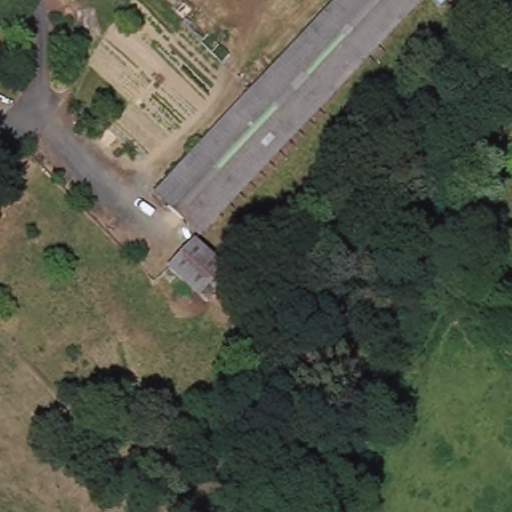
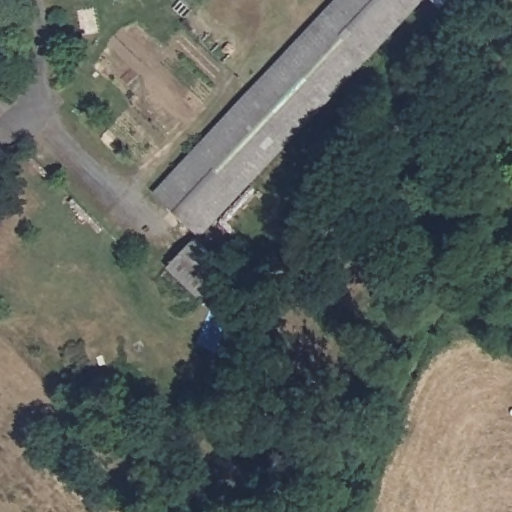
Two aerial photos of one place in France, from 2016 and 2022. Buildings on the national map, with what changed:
unchanged [(199,234),(195,227),(187,239),(175,227),(185,219),(181,215),(156,190),(335,0),(429,0),(209,237),(234,265),(204,296),(170,266),(199,234)]
unchanged [(437,0),(452,0),(445,8),(437,0)]

